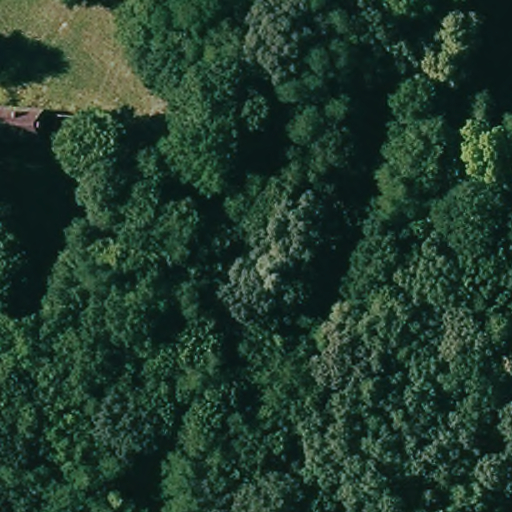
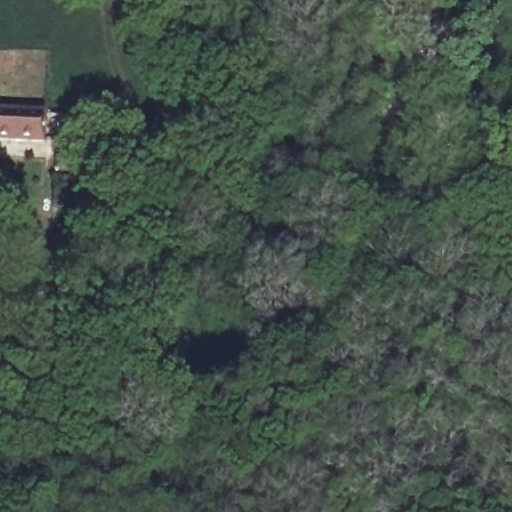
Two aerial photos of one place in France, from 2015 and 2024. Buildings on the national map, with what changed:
unchanged [(32,142),(0,141),(0,111),(35,113),(32,142)]

